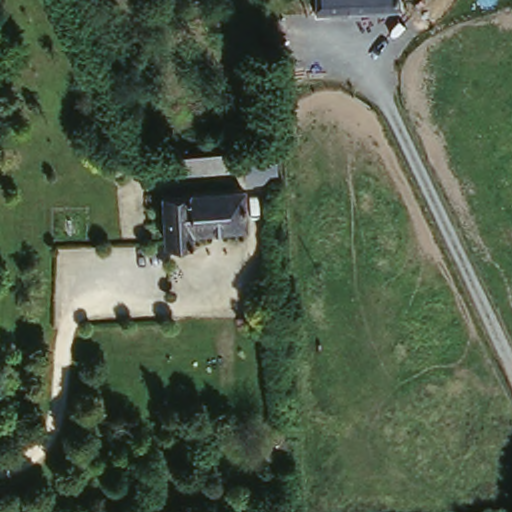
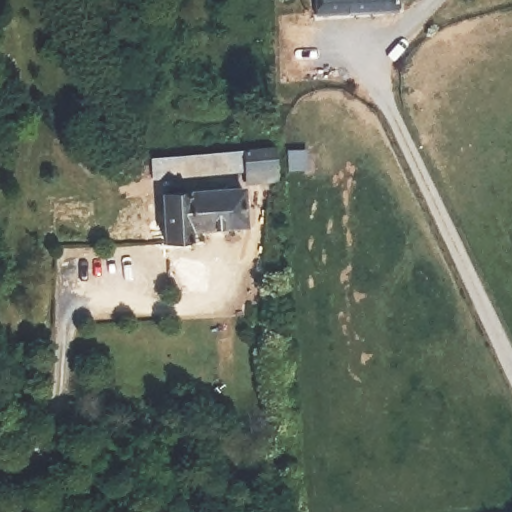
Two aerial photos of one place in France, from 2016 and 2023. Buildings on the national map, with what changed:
unchanged [(314,0),(399,0),(399,12),(331,13),(315,15),(314,0)]
unchanged [(278,180),(250,185),(248,171),(153,180),(150,156),(275,143),(278,180)]
unchanged [(244,187),(248,226),(191,232),(192,241),(166,244),(162,196),(244,187)]

